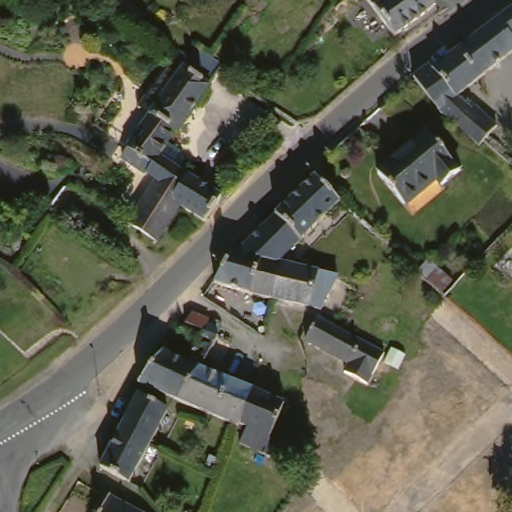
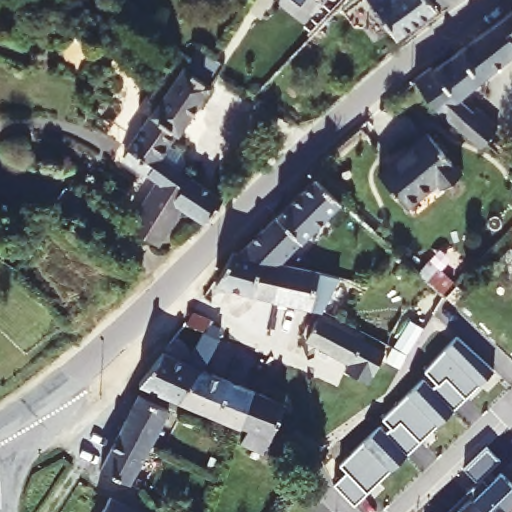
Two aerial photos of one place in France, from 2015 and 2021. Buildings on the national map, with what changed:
new [(302,7),(293,0),(308,0),(302,7)]
unchanged [(432,18),(391,44),(360,0),(421,0),(432,18)]
unchanged [(482,133),(471,143),(466,148),(408,81),(422,68),(425,71),(512,12),(512,44),(511,45),(512,47),(512,54),(450,96),(482,133)]
unchanged [(142,241),(137,248),(122,238),(127,229),(124,228),(155,187),(145,181),(151,173),(127,154),(125,153),(149,121),(192,65),(198,55),(215,67),(225,74),(222,77),(211,92),(213,94),(177,142),(175,141),(167,151),(181,161),(182,172),(177,178),(220,209),(202,231),(200,230),(178,215),(152,248),(142,241)]
unchanged [(177,58),(192,65),(149,121),(137,111),(177,58)]
unchanged [(422,135),(456,171),(437,187),(430,180),(402,206),(376,176),(422,135)]
unchanged [(512,177),(512,178),(511,178),(512,177)]
unchanged [(314,182),(339,207),(281,261),(274,260),(236,252),(314,182)]
unchanged [(231,252),(236,252),(274,260),(267,299),(209,286),(231,252)]
unchanged [(274,260),(281,261),(333,271),(331,281),(316,310),(267,299),(274,260)]
new [(430,260),(453,282),(442,295),(418,273),(430,260)]
unchanged [(239,432),(235,431),(191,410),(182,406),(139,386),(161,354),(187,366),(194,356),(191,354),(203,335),(184,326),(192,316),(214,325),(212,328),(224,334),(219,343),(201,372),(252,394),(251,399),(239,432)]
unchanged [(340,371),(344,364),(326,354),(310,346),(298,340),(311,318),(381,351),(380,353),(366,382),(340,371)]
new [(346,476),(338,469),(378,431),(386,438),(391,433),(381,423),(422,384),(432,394),(436,389),(425,377),(457,340),(494,374),(353,510),(333,488),(346,476)]
unchanged [(172,416),(158,440),(146,433),(117,480),(90,464),(132,393),(172,416)]
unchanged [(285,406),(279,420),(272,438),(287,444),(284,452),(280,464),(242,449),(247,435),(239,432),(251,399),(252,394),(285,406)]
unchanged [(146,433),(158,440),(163,443),(136,488),(135,491),(117,480),(146,433)]
unchanged [(125,512),(103,512),(109,502),(125,512)]

